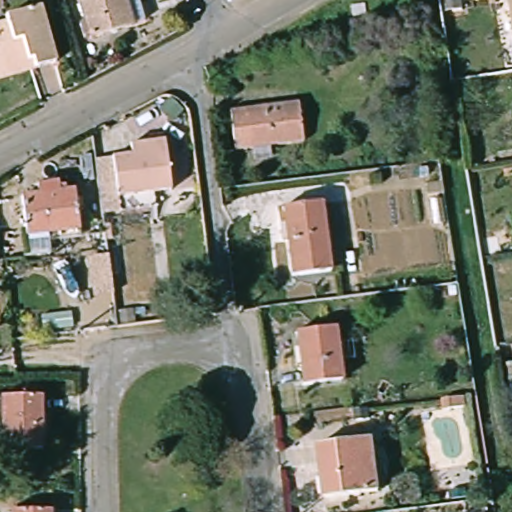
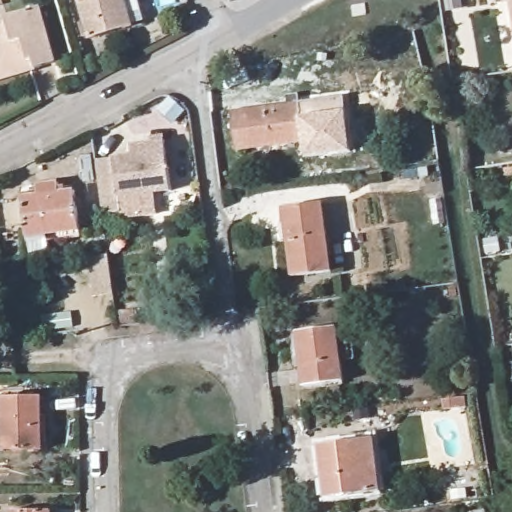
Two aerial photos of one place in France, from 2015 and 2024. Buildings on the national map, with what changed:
unchanged [(0,7),(0,0),(2,0),(3,5),(0,7)]
unchanged [(132,24),(133,26),(91,38),(80,0),(141,0),(147,20),(132,24)]
unchanged [(512,1),(512,14),(510,1),(512,1)]
unchanged [(363,5),(365,15),(353,16),(352,6),(363,5)]
unchanged [(55,64),(0,80),(0,25),(6,24),(5,17),(40,7),(55,64)]
new [(351,151),(304,157),(302,142),(303,142),(300,117),(298,104),(345,97),(346,111),(351,151)]
unchanged [(298,104),(303,142),(234,151),(230,112),(298,104)]
unchanged [(127,147),(144,146),(145,155),(127,157),(127,147)]
unchanged [(162,156),(166,194),(113,200),(108,162),(127,160),(145,158),(162,156)]
unchanged [(22,247),(20,226),(25,226),(22,187),(40,185),(39,176),(60,174),(60,180),(75,178),(80,228),(48,231),(49,245),(22,247)]
unchanged [(322,203),(331,271),(290,278),(282,209),(322,203)]
unchanged [(457,286),(458,296),(441,298),(440,288),(457,286)]
unchanged [(335,328),(342,382),(302,386),(296,333),(335,328)]
unchanged [(41,450),(4,450),(3,398),(41,397),(41,450)]
unchanged [(465,398),(466,407),(450,409),(449,400),(465,398)]
unchanged [(372,438),(379,491),(325,498),(317,445),(372,438)]
unchanged [(485,510),(486,512),(475,512),(475,511),(485,510)]
unchanged [(51,512),(12,512),(12,511),(51,511),(51,512)]

